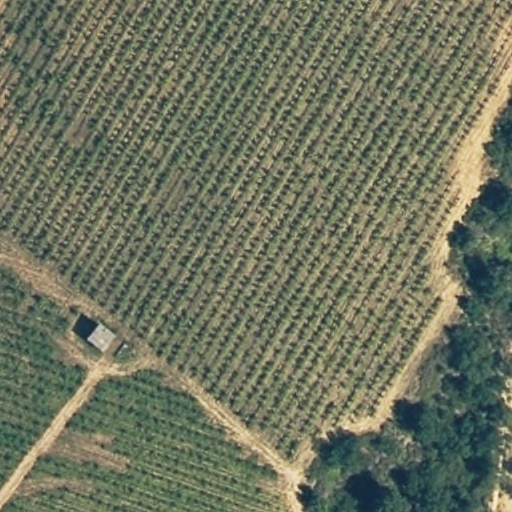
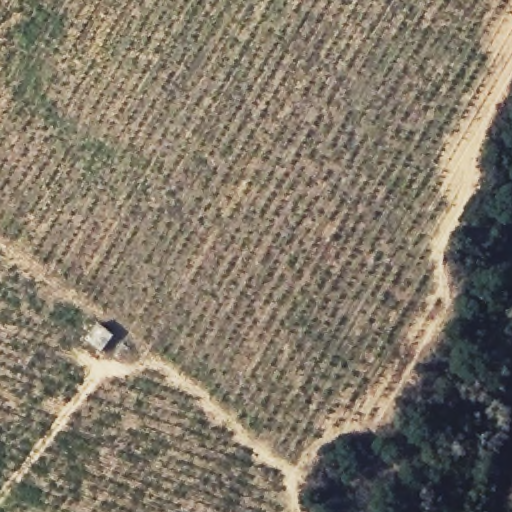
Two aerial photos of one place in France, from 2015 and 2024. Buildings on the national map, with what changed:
unchanged [(94,321),(115,336),(100,353),(81,339),(94,321)]

